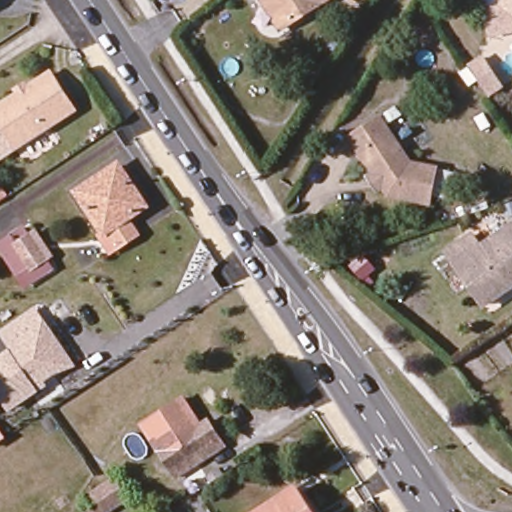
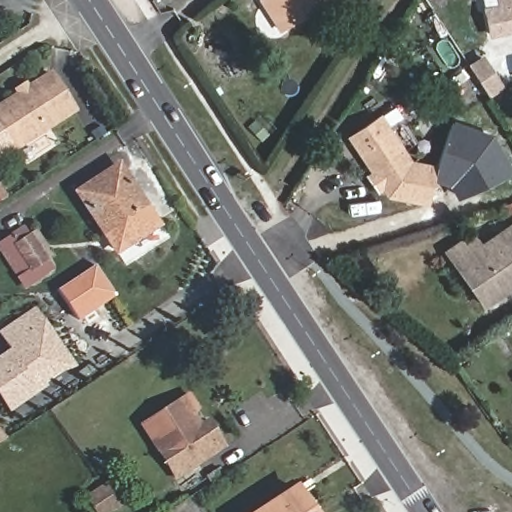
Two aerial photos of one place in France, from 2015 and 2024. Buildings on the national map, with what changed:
unchanged [(268,0),(327,0),(285,26),(268,0)]
unchanged [(485,14),(499,11),(497,0),(512,0),(512,36),(490,40),(485,14)]
unchanged [(473,68),(480,63),(496,86),(488,91),(473,68)]
unchanged [(49,74),(73,110),(15,148),(0,125),(0,106),(49,74)]
unchanged [(410,159),(435,164),(434,169),(450,172),(446,192),(430,189),(428,199),(388,190),(349,134),(380,113),(410,159)]
new [(494,135),(512,167),(512,175),(457,201),(450,187),(447,186),(450,172),(434,169),(435,164),(453,121),(494,135)]
unchanged [(142,234),(121,248),(110,232),(83,193),(122,168),(148,207),(131,218),(142,234)]
unchanged [(31,281),(25,272),(28,269),(20,257),(17,259),(3,239),(28,222),(56,264),(31,281)]
unchanged [(441,257),(466,239),(474,251),(512,225),(512,287),(478,310),(441,257)]
unchanged [(34,391),(8,408),(0,396),(0,358),(13,349),(2,332),(33,310),(46,329),(71,366),(34,391)]
unchanged [(181,399),(199,426),(207,421),(224,447),(175,478),(159,452),(141,425),(181,399)]
unchanged [(73,512),(80,507),(82,506),(90,500),(88,497),(113,481),(125,499),(106,512),(73,512)]
unchanged [(295,489),(311,512),(260,512),(295,489)]

